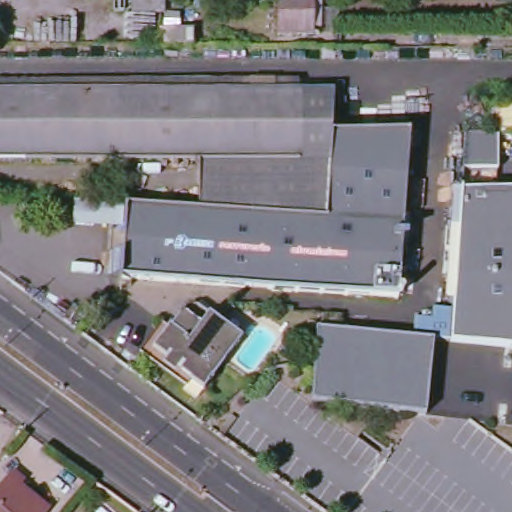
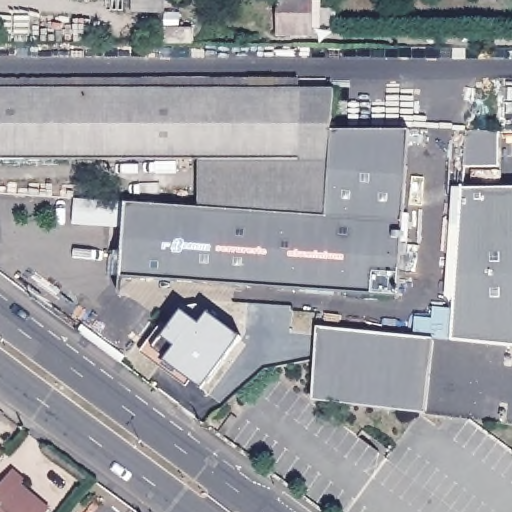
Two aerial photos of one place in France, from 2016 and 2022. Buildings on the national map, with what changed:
unchanged [(312,0),(310,33),(276,31),(277,0),(312,0)]
unchanged [(158,46),(159,30),(192,31),(191,46),(158,46)]
unchanged [(331,133),(330,219),(204,210),(202,160),(0,160),(0,91),(332,91),(331,133)]
unchanged [(458,166),(460,126),(490,125),(490,98),(512,98),(512,129),(500,128),(497,166),(458,166)]
unchanged [(126,278),(132,205),(204,210),(330,219),(331,133),(410,134),(401,299),(126,278)]
unchanged [(449,331),(450,328),(450,325),(458,183),(512,183),(512,342),(449,336),(449,331)]
unchanged [(170,325),(191,340),(210,313),(245,338),(205,392),(190,380),(195,374),(170,356),(167,360),(153,349),(170,325)]
unchanged [(316,402),(320,328),(436,340),(428,414),(316,402)]
unchanged [(25,481),(18,490),(33,503),(36,499),(50,510),(48,512),(0,512),(0,485),(12,471),(25,481)]

